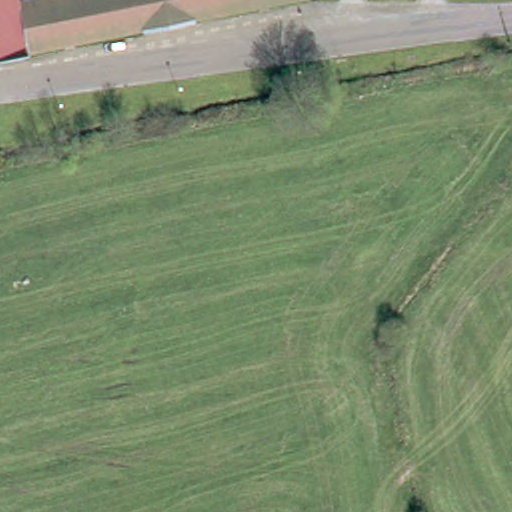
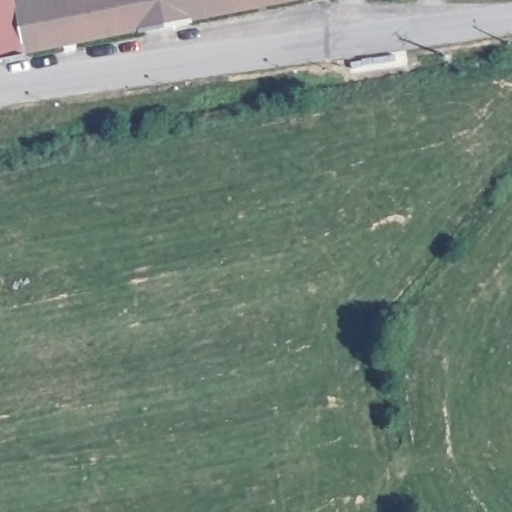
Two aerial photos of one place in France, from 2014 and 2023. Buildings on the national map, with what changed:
unchanged [(27,54),(0,60),(0,0),(17,0),(25,47),(27,54)]
unchanged [(143,33),(141,27),(25,47),(17,0),(290,0),(190,18),(191,25),(190,25),(143,33)]

